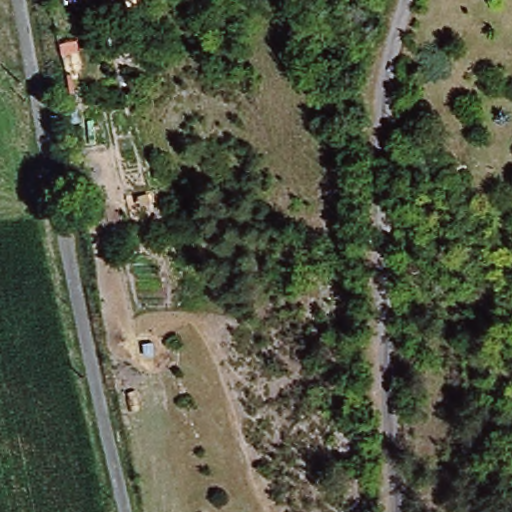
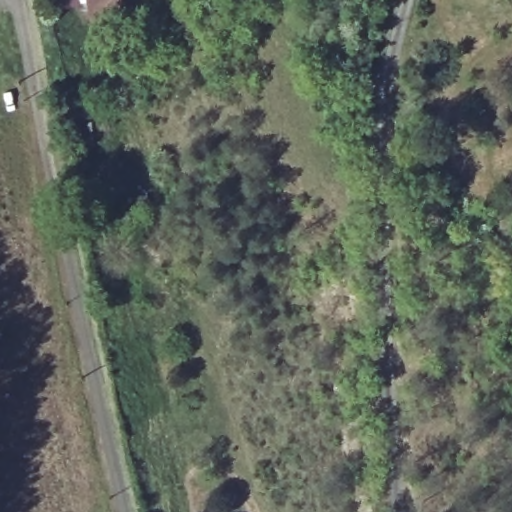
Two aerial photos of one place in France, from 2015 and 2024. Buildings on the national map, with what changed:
unchanged [(121,15),(90,22),(84,0),(117,0),(121,15)]

